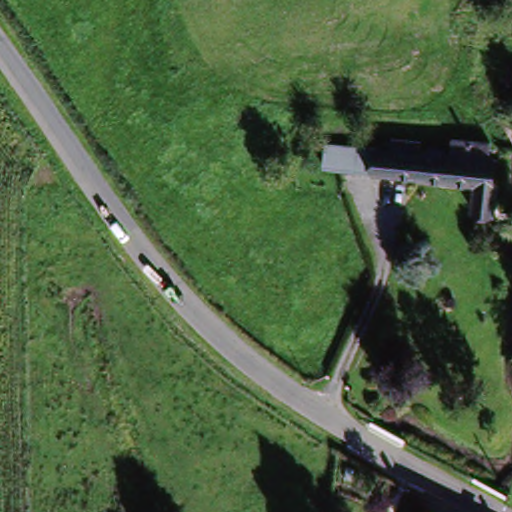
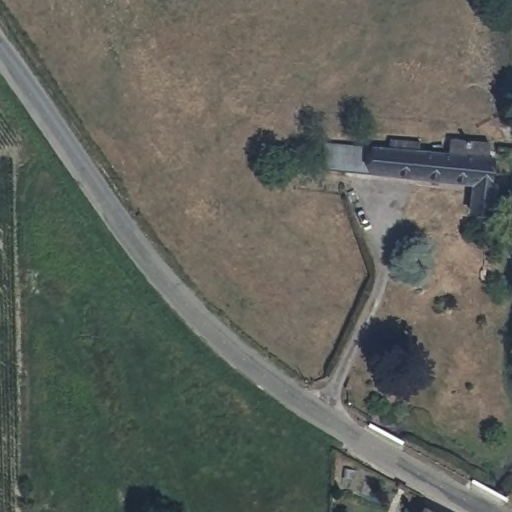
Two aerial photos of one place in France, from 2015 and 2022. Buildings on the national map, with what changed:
unchanged [(356,176),(323,174),(315,172),(319,142),(332,145),(358,149),(411,155),(442,157),(443,143),(442,141),(483,145),(482,160),(487,161),(487,183),(493,185),(492,214),(465,214),(465,189),(419,185),(356,176)]

